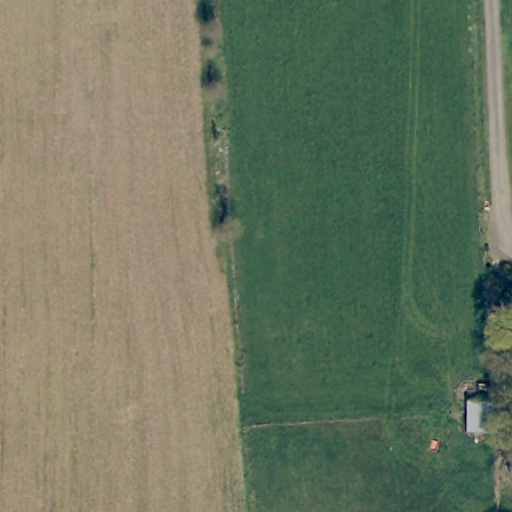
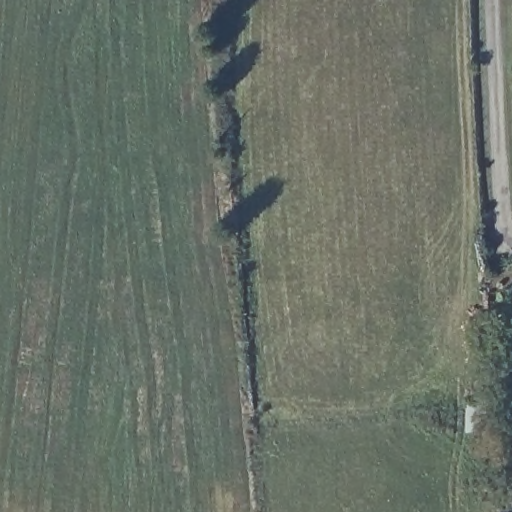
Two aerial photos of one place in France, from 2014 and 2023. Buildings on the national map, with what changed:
unchanged [(485,433),(486,402),(492,403),(493,400),(496,398),(503,398),(503,434),(485,433)]

